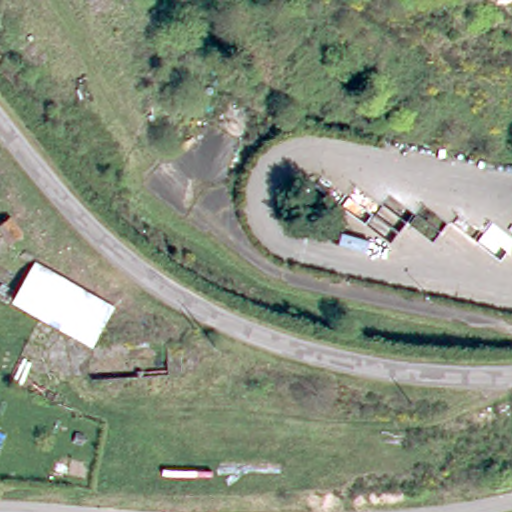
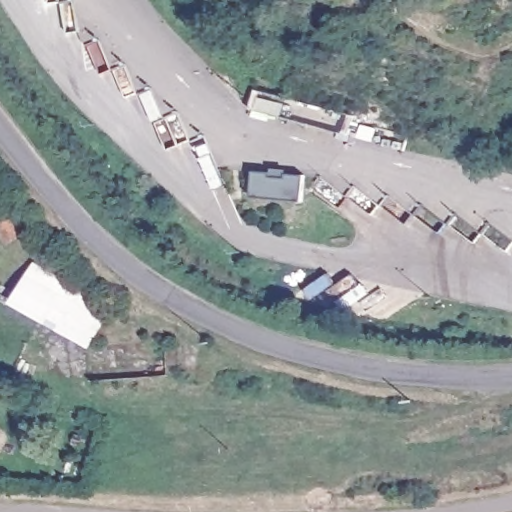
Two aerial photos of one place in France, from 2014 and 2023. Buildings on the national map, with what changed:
new [(258,169),(306,171),(304,201),(254,196),(258,169)]
unchanged [(106,310),(88,341),(14,293),(33,262),(106,310)]

